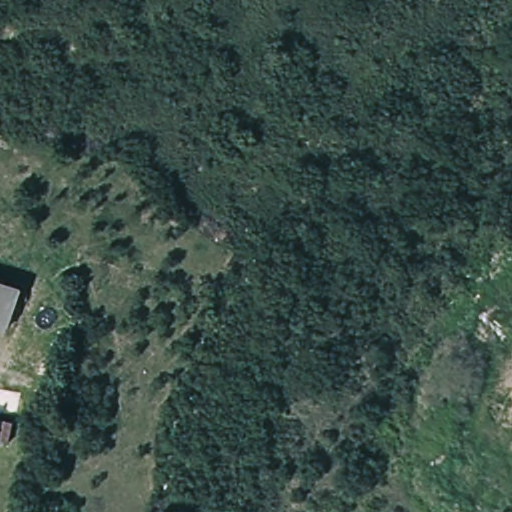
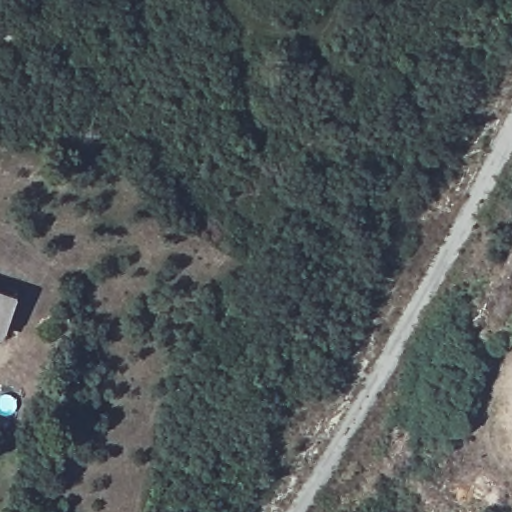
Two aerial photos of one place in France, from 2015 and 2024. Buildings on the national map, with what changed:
unchanged [(8,340),(0,336),(0,298),(21,307),(8,340)]

